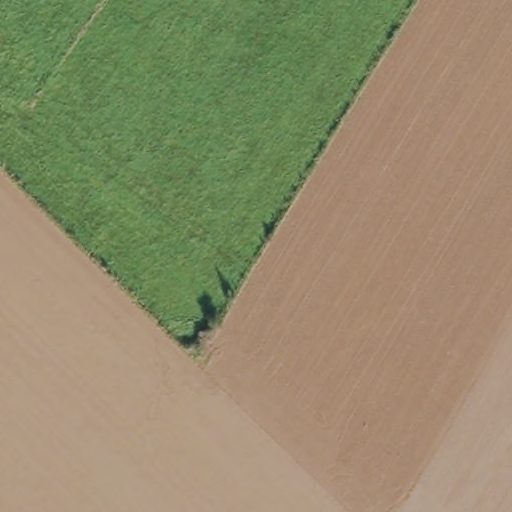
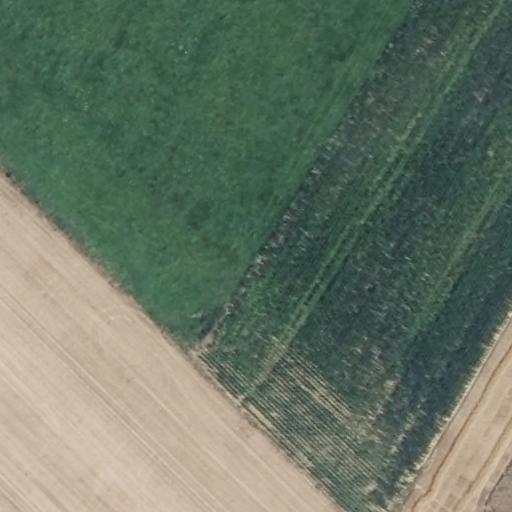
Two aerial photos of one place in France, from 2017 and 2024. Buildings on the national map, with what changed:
[]

